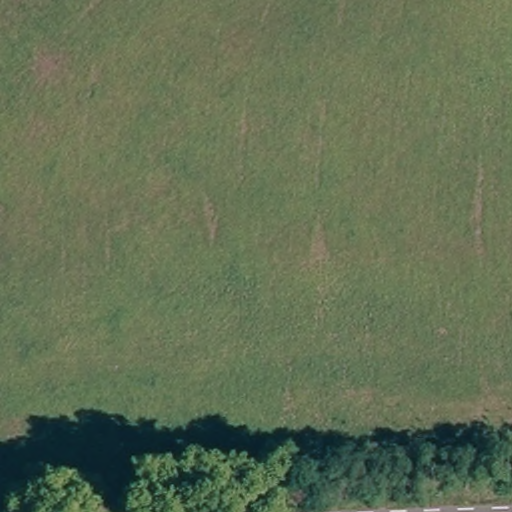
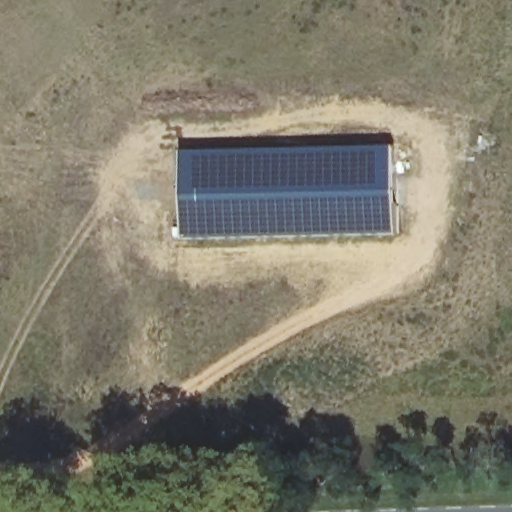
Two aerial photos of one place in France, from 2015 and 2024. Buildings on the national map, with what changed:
new [(395,144),(397,234),(185,239),(182,150),(395,144)]

